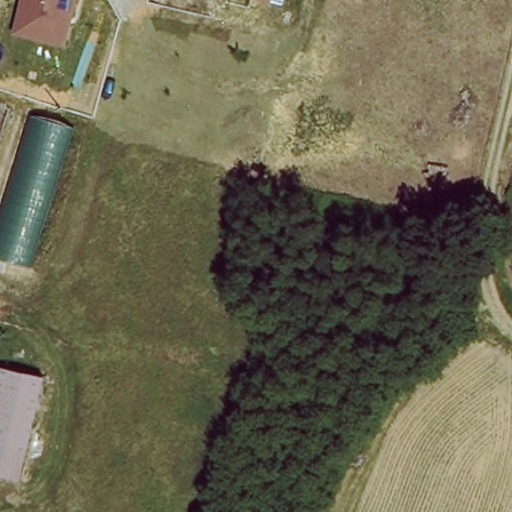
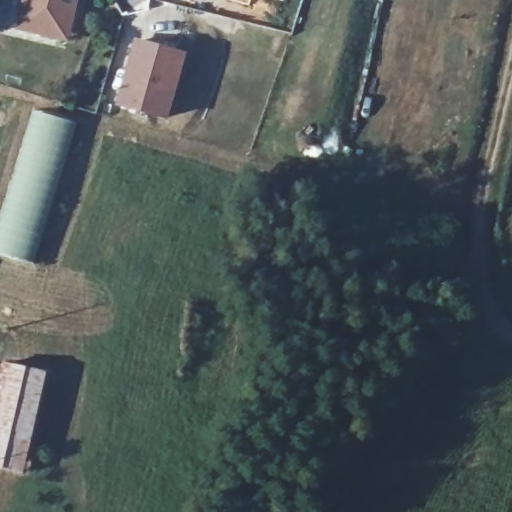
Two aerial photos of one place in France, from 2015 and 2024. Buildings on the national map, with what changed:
unchanged [(16,33),(24,0),(82,0),(72,47),(16,33)]
unchanged [(275,0),(286,0),(286,3),(275,0)]
new [(138,40),(190,55),(170,121),(119,107),(138,40)]
demolished [(0,104),(11,107),(0,146),(0,104)]
unchanged [(0,268),(0,223),(33,115),(76,126),(31,277),(0,268)]
unchanged [(0,469),(0,384),(4,366),(46,376),(22,474),(0,469)]

